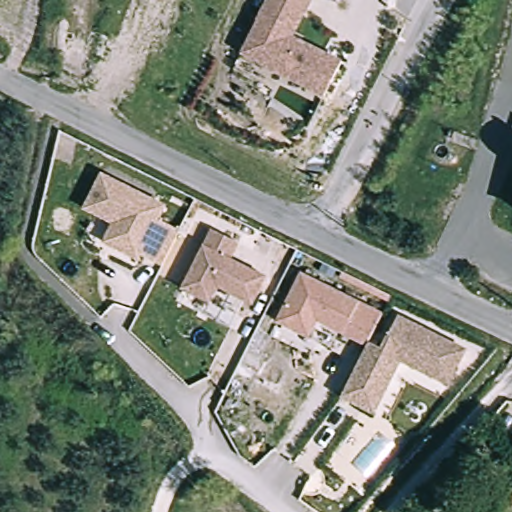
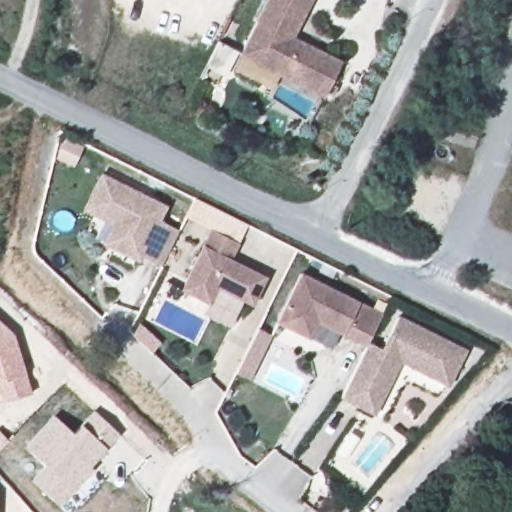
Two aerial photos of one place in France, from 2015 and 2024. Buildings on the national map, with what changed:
unchanged [(342,65),(324,99),(240,56),(268,0),(312,0),(292,40),(342,65)]
unchanged [(115,225),(83,209),(100,174),(164,205),(157,219),(178,229),(172,243),(161,265),(140,255),(137,259),(119,251),(106,244),(115,225)]
unchanged [(238,241),(230,257),(266,275),(252,303),(217,285),(209,302),(181,288),(211,228),(238,241)]
unchanged [(371,340),(369,344),(319,319),(311,336),(279,320),(304,272),(385,312),(371,340)]
unchanged [(357,402),(343,395),(369,344),(371,340),(385,347),(401,314),(467,348),(450,383),(402,358),(387,388),(375,411),(357,402)]
new [(14,334),(31,393),(0,403),(0,321),(14,334)]
new [(89,466),(94,470),(60,507),(31,480),(45,465),(24,445),(53,414),(72,431),(93,409),(120,434),(106,448),(89,466)]
unchanged [(512,508),(507,506),(512,495),(512,508)]

